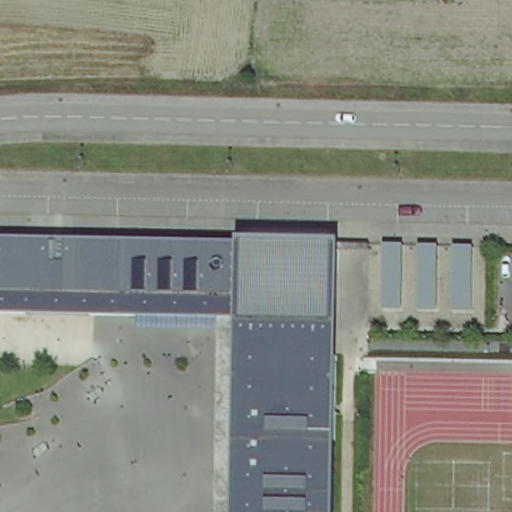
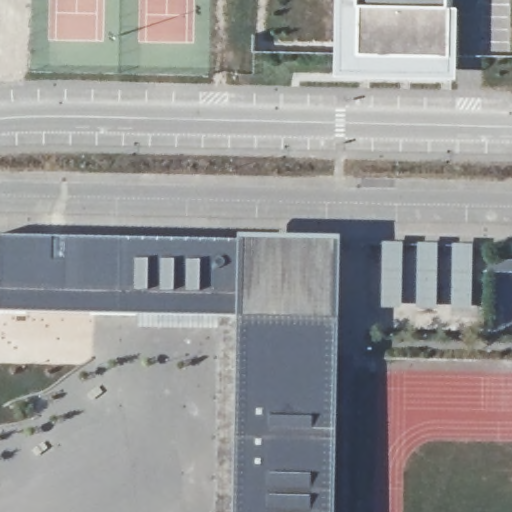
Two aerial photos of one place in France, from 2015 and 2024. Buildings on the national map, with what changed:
new [(455,77),(337,75),(338,0),(458,0),(455,77)]
unchanged [(223,236),(222,312),(0,310),(0,233),(223,236)]
unchanged [(241,239),(339,240),(337,348),(238,345),(241,239)]
unchanged [(334,512),(234,512),(238,345),(337,348),(334,512)]

